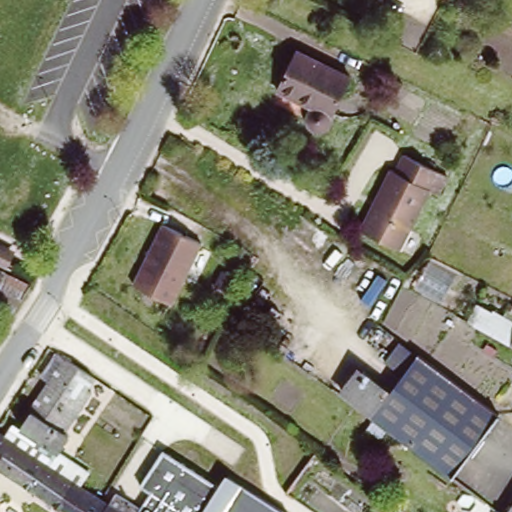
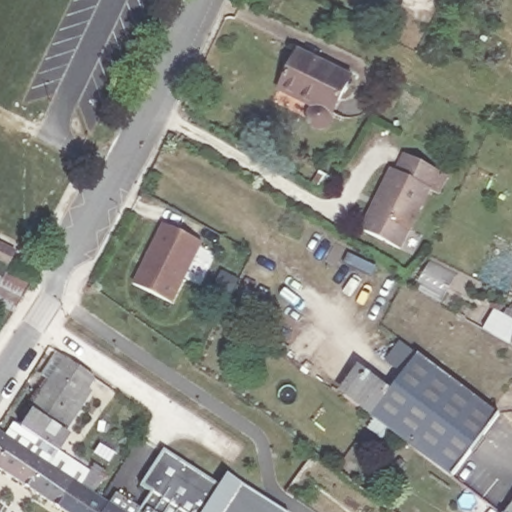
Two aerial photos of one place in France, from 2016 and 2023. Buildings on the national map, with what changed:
unchanged [(337,113),(338,113),(337,117),(335,121),(332,123),(329,124),(325,125),(321,125),(318,123),(315,122),(313,120),(312,118),(311,115),(310,112),(311,108),(317,99),(283,84),(292,64),(302,44),(308,47),(358,69),(337,113)]
unchanged [(404,172),(412,156),(454,178),(445,195),(437,191),(406,250),(373,233),(388,205),(382,202),(399,170),(404,172)]
unchanged [(330,182),(323,193),(311,186),(317,175),(330,182)]
unchanged [(162,222),(200,240),(171,302),(132,284),(162,222)]
unchanged [(12,252),(4,266),(0,264),(0,246),(12,252)]
unchanged [(0,305),(0,270),(27,284),(19,298),(11,311),(0,305)]
unchanged [(483,304),(512,321),(512,344),(471,320),(483,304)]
unchanged [(37,372),(53,346),(97,376),(63,429),(69,433),(57,450),(77,463),(70,474),(3,432),(12,419),(20,424),(48,378),(37,372)]
unchanged [(505,415),(455,476),(348,397),(367,372),(393,389),(423,354),(505,415)]
unchanged [(3,432),(70,474),(99,494),(107,499),(98,512),(71,512),(0,467),(0,431),(3,432)]
unchanged [(218,486),(225,474),(242,485),(282,512),(134,512),(139,503),(149,489),(142,484),(162,450),(218,486)]
unchanged [(115,487),(139,503),(134,512),(98,512),(107,499),(115,487)]
unchanged [(512,512),(504,512),(512,501),(512,512)]
unchanged [(490,506),(487,510),(482,506),(485,502),(490,506)]

